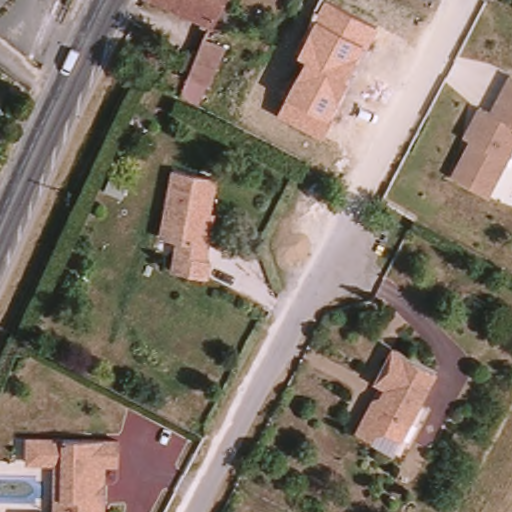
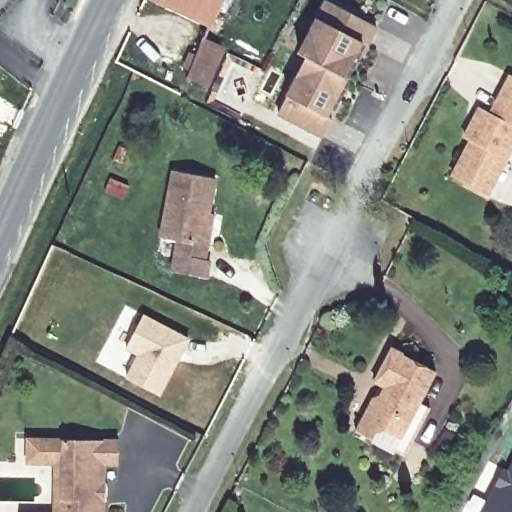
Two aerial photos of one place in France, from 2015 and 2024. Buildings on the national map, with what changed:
unchanged [(150,0),(225,0),(211,30),(150,1),(150,0)]
unchanged [(377,25),(322,136),(275,114),(307,57),(297,52),(314,17),(323,0),(326,0),(377,25)]
unchanged [(206,95),(185,87),(201,46),(224,56),(206,95)]
unchanged [(440,167),(460,131),(464,133),(466,128),(464,124),(476,102),(480,105),(501,67),(512,73),(512,123),(510,122),(475,185),(440,167)]
unchanged [(512,123),(512,149),(488,193),(475,185),(510,122),(512,123)]
unchanged [(216,183),(203,249),(212,251),(207,282),(172,276),(179,245),(162,242),(175,175),(216,183)]
new [(143,313),(190,338),(160,395),(124,376),(135,355),(124,348),(143,313)]
unchanged [(366,419),(372,423),(387,396),(390,396),(395,388),(380,378),(397,348),(442,373),(400,452),(377,441),(359,431),(366,419)]
unchanged [(102,504),(102,512),(59,512),(59,462),(40,462),(25,462),(26,447),(27,438),(117,441),(117,467),(101,465),(102,485),(107,485),(107,503),(102,504)]
new [(509,469),(512,463),(512,512),(480,512),(504,466),(509,469)]

